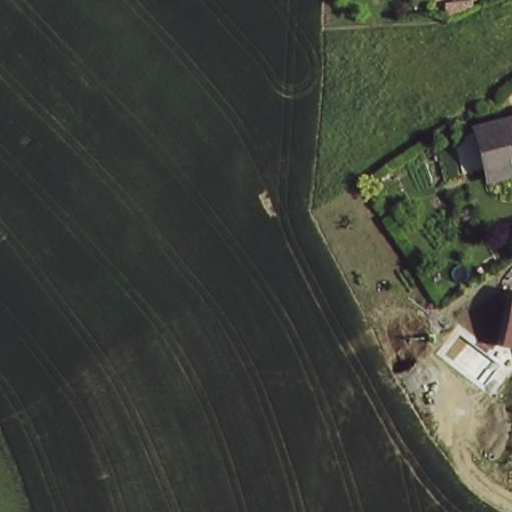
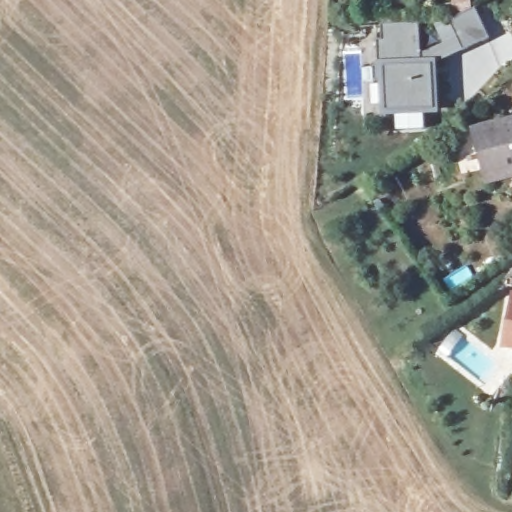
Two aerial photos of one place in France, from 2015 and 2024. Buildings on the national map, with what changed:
new [(377,24),(417,21),(420,54),(442,44),(429,12),(451,3),(451,0),(475,0),(475,11),(489,39),(432,65),(435,112),(379,115),(375,65),(377,24)]
unchanged [(510,170),(482,178),(468,124),(512,113),(512,158),(507,159),(510,170)]
unchanged [(512,292),(512,348),(499,345),(509,291),(512,292)]

